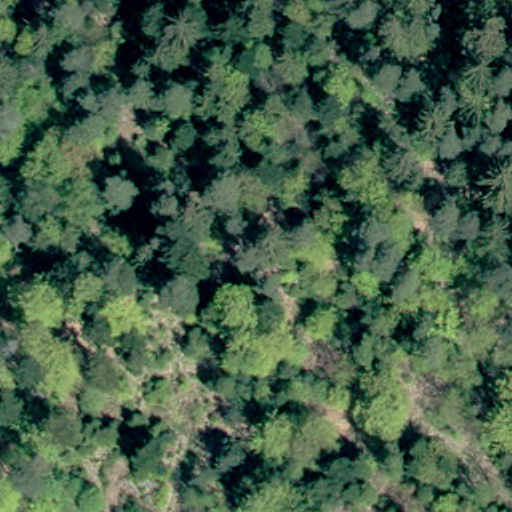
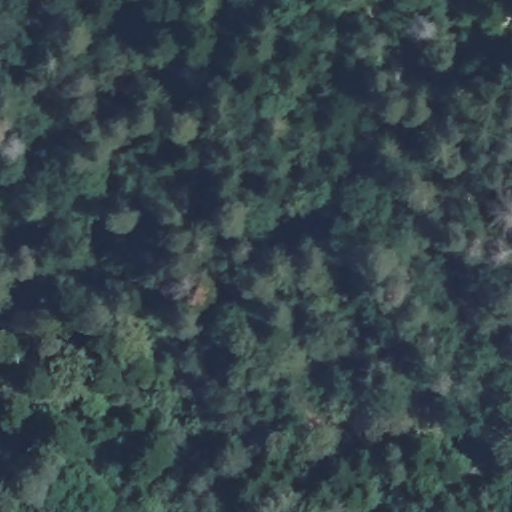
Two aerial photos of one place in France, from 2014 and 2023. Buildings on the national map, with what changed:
[]

